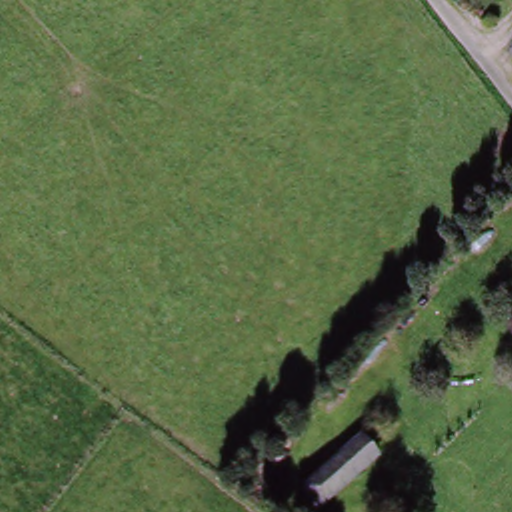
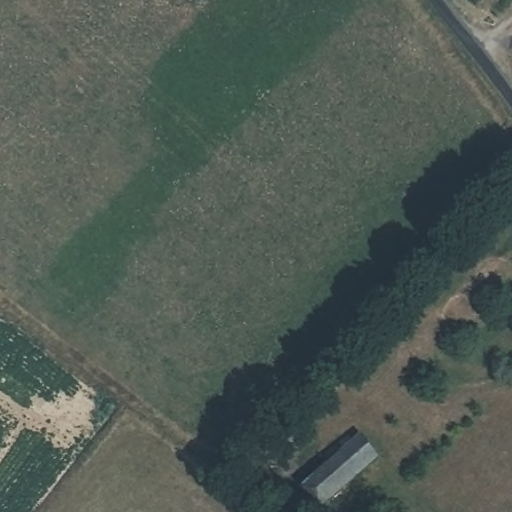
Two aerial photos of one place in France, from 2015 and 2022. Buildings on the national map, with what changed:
unchanged [(319,506),(293,479),(333,439),(339,446),(355,431),(375,452),(319,506)]

